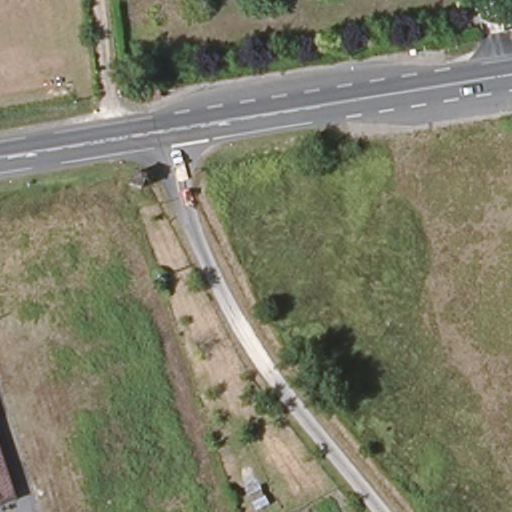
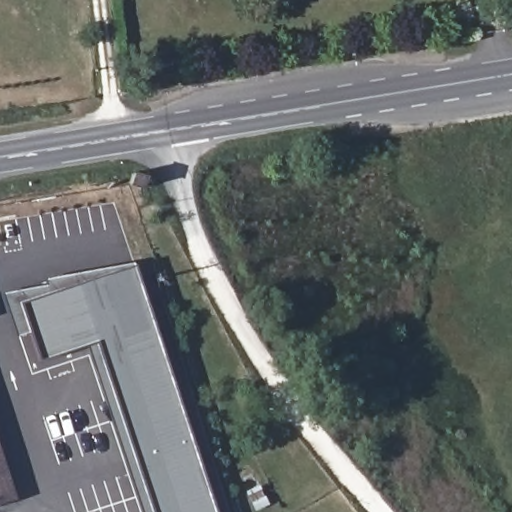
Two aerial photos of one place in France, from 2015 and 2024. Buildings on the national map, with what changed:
unchanged [(145,178),(139,191),(127,185),(132,174),(145,178)]
new [(49,287),(45,278),(134,265),(215,512),(144,512),(87,344),(41,359),(32,333),(17,339),(3,293),(49,287)]
unchanged [(8,505),(0,507),(0,478),(8,505)]

